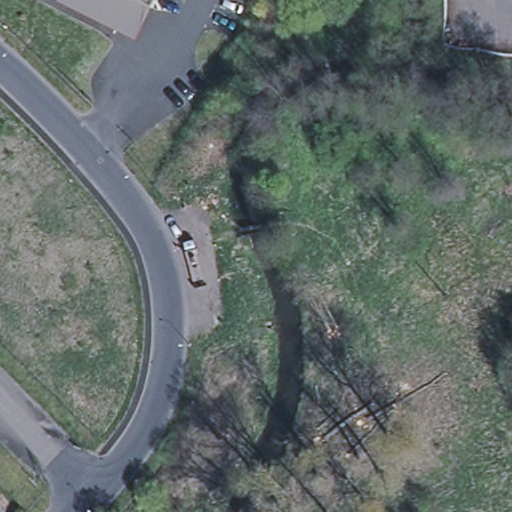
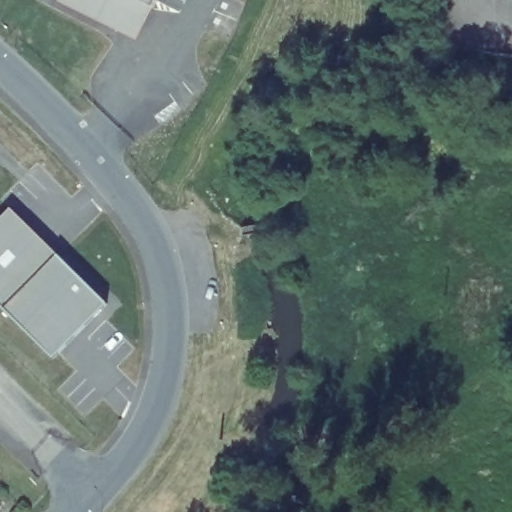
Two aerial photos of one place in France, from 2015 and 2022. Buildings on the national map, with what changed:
unchanged [(140,44),(60,5),(62,0),(133,0),(155,11),(140,44)]
unchanged [(133,0),(161,0),(155,11),(133,0)]
new [(107,305),(53,358),(0,306),(0,219),(10,210),(107,305)]

